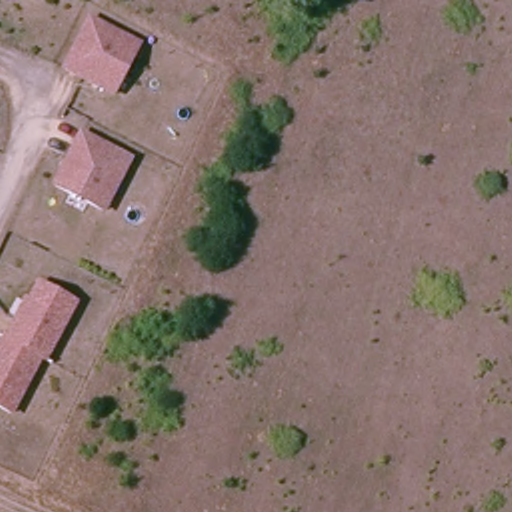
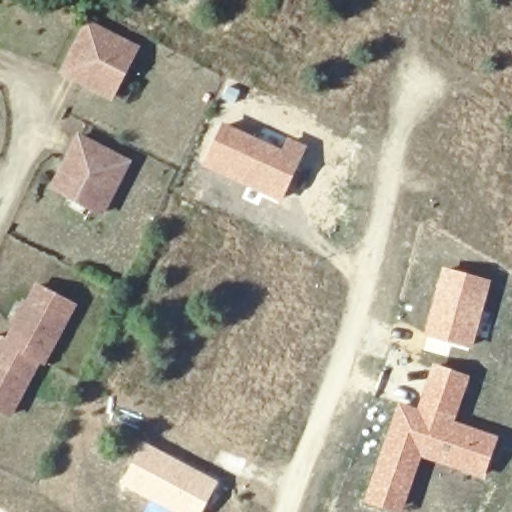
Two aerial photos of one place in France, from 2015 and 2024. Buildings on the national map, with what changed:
unchanged [(124,97),(76,70),(102,24),(149,50),(140,66),(134,79),(124,97)]
new [(222,122),(281,149),(287,136),(308,145),(280,203),(202,165),(222,122)]
unchanged [(70,189),(96,137),(144,162),(116,214),(101,205),(86,199),(70,189)]
new [(441,265),(492,280),(472,350),(422,335),(441,265)]
unchanged [(5,340),(33,282),(70,301),(41,357),(36,355),(5,340)]
unchanged [(36,355),(8,413),(0,409),(0,337),(5,340),(36,355)]
new [(398,400),(415,407),(432,362),(471,376),(455,420),(499,435),(483,480),(421,457),(402,512),(388,512),(361,502),(398,400)]
new [(142,438),(220,481),(203,512),(171,512),(116,485),(142,438)]

